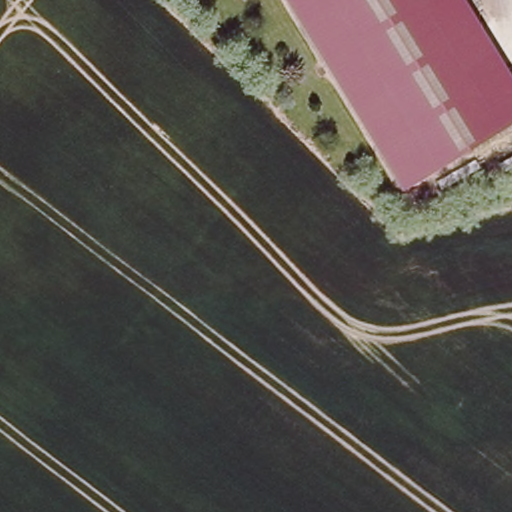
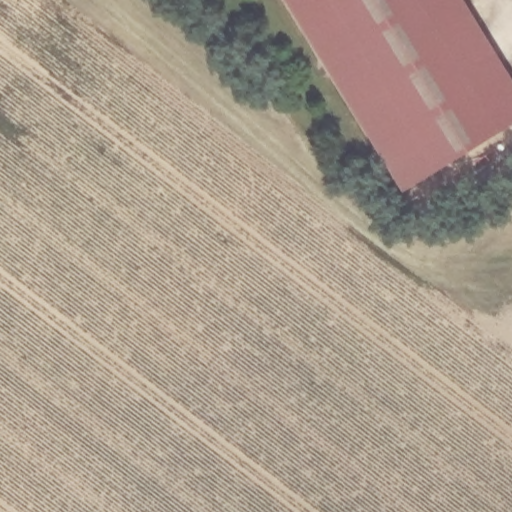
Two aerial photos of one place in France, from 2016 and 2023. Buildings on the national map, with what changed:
unchanged [(512,121),(402,190),(288,0),(462,0),(512,82),(512,121)]

